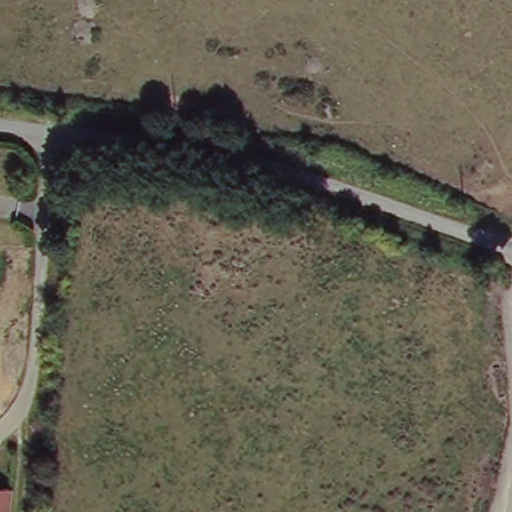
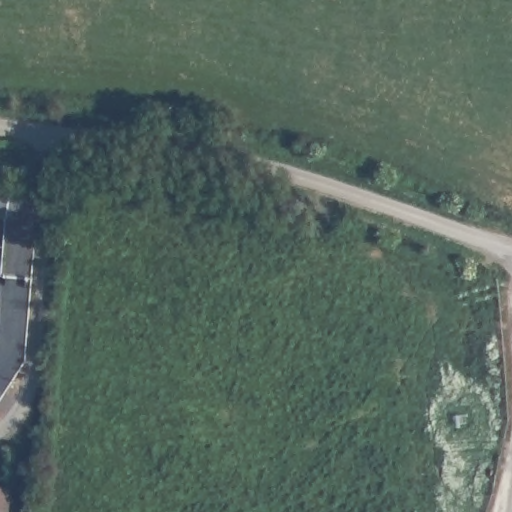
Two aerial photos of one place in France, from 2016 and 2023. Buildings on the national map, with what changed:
unchanged [(10,491),(8,512),(0,512),(0,491),(10,491)]

